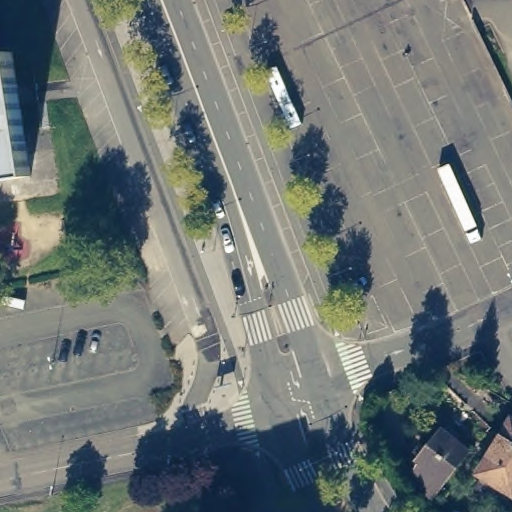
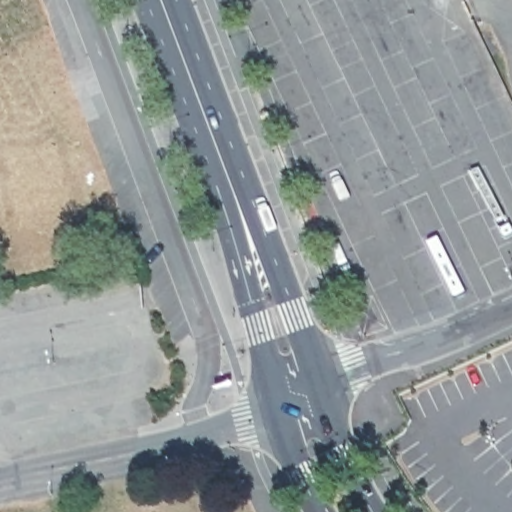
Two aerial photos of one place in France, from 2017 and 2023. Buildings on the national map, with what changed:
demolished [(32,172),(0,177),(0,50),(14,47),(32,172)]
demolished [(512,486),(505,495),(478,478),(484,468),(477,463),(512,408),(512,409),(512,486)]
demolished [(407,475),(420,459),(416,456),(441,424),(470,446),(432,494),(407,475)]

